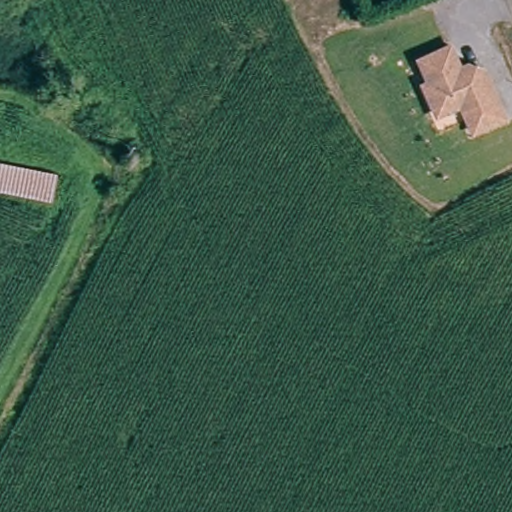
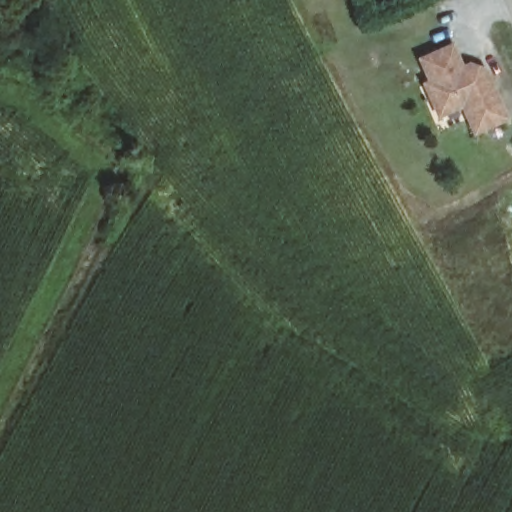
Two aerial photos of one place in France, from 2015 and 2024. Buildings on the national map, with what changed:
unchanged [(480,129),(467,102),(443,113),(428,83),(434,80),(423,58),(454,44),(467,71),(473,69),(483,72),(486,78),(492,75),(511,115),(480,129)]
demolished [(53,203),(0,192),(0,162),(60,172),(53,203)]

